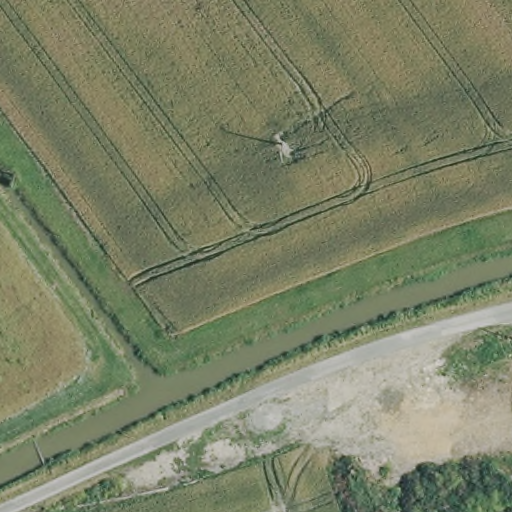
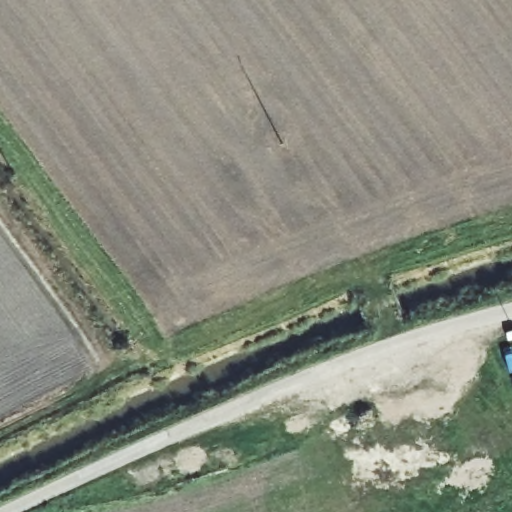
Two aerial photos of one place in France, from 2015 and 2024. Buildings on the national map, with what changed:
[]

